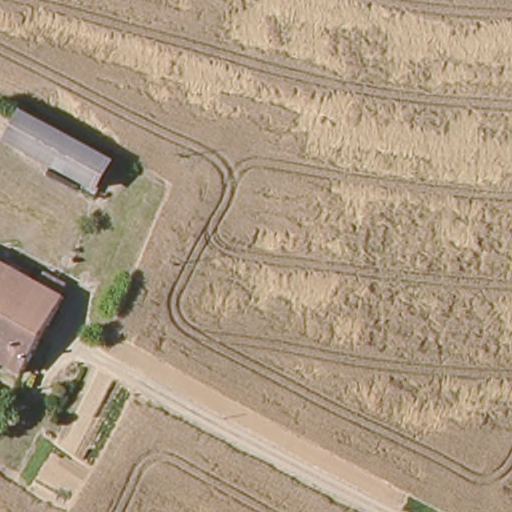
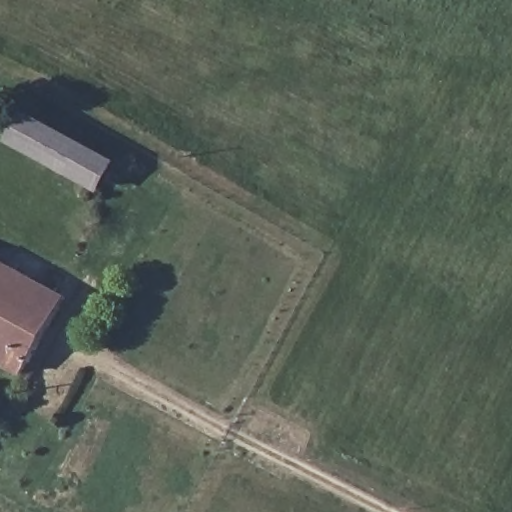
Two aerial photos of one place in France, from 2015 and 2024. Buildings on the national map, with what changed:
unchanged [(44,161),(7,140),(24,115),(59,134),(44,161)]
unchanged [(95,190),(44,161),(59,134),(112,163),(95,190)]
unchanged [(40,283),(47,271),(70,285),(64,296),(69,299),(26,375),(0,360),(0,261),(40,283)]

